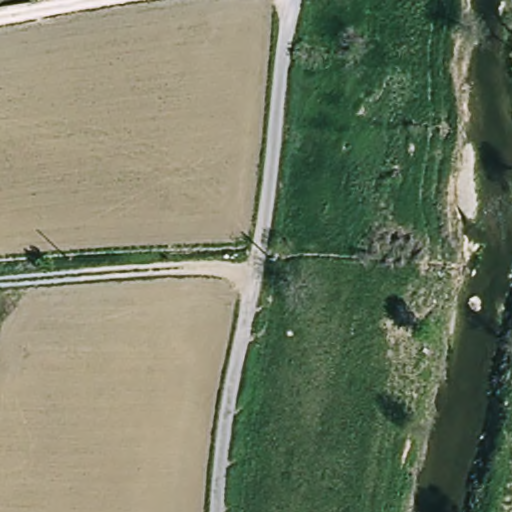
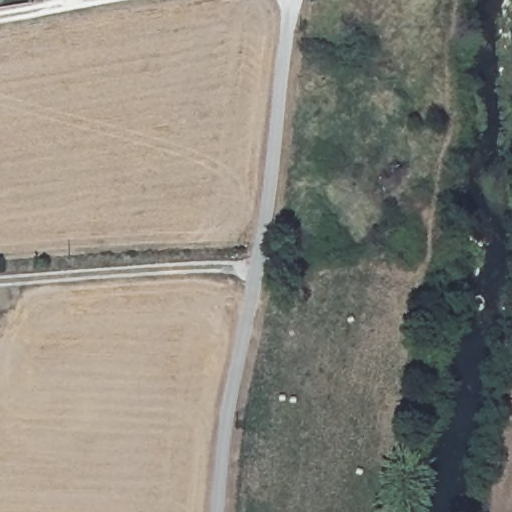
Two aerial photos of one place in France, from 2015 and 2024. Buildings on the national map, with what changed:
[]

